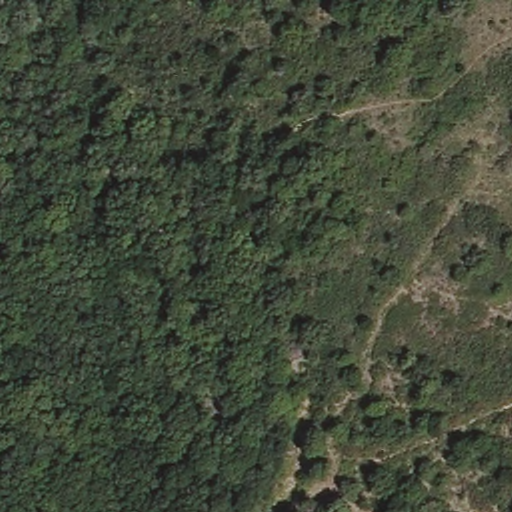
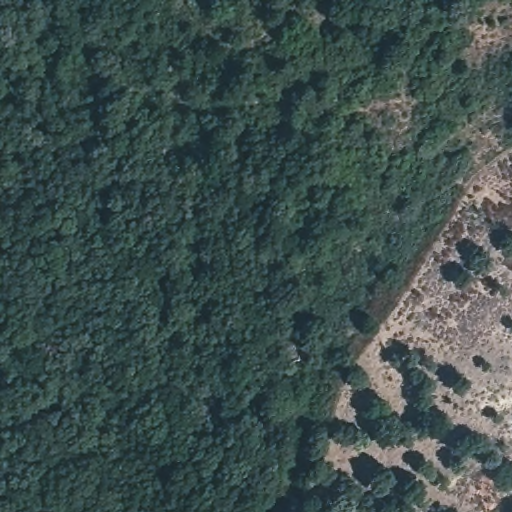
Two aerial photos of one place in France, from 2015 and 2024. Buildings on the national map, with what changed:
[]

